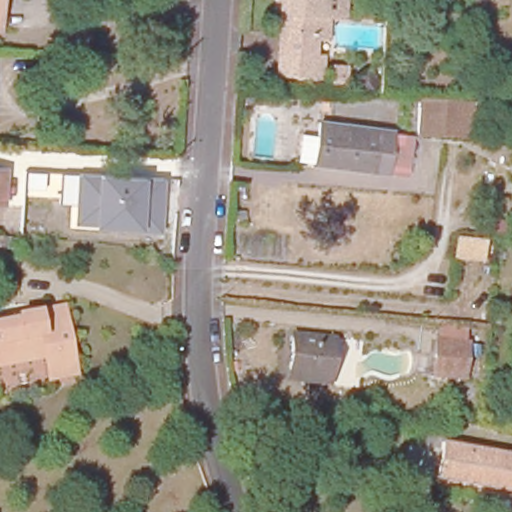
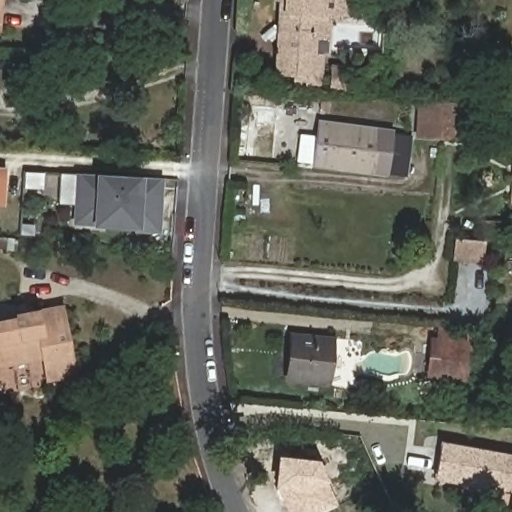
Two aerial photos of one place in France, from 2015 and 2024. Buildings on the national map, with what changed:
unchanged [(273,51),(276,0),(339,0),(337,15),(312,14),(308,54),(307,74),(272,72),(273,51)]
unchanged [(468,141),(442,139),(419,136),(423,103),(445,105),(472,108),(468,141)]
unchanged [(335,110),(340,127),(322,134),(316,116),(335,110)]
unchanged [(319,151),(336,153),(340,127),(411,136),(406,178),(333,169),(317,167),(319,151)]
unchanged [(1,203),(0,203),(0,169),(3,169),(1,203)]
unchanged [(136,229),(94,227),(75,225),(76,204),(60,203),(61,174),(78,174),(97,174),(146,177),(166,177),(162,234),(136,233),(136,229)]
unchanged [(512,189),(512,201),(511,201),(512,189)]
unchanged [(485,238),(482,263),(450,259),(452,236),(485,238)]
unchanged [(71,311),(85,379),(57,384),(52,363),(1,372),(0,368),(0,328),(27,323),(27,319),(71,311)]
unchanged [(435,375),(438,338),(468,341),(464,379),(435,375)]
unchanged [(323,343),(320,387),(279,383),(283,340),(323,343)]
unchanged [(485,411),(499,411),(498,432),(483,432),(485,411)]
unchanged [(442,449),(512,460),(512,496),(435,482),(442,449)]
new [(318,461),(328,483),(326,483),(337,506),(324,512),(285,512),(275,489),(277,456),(318,461)]

